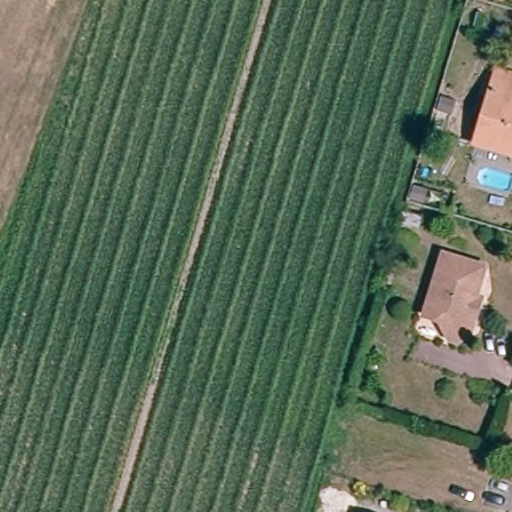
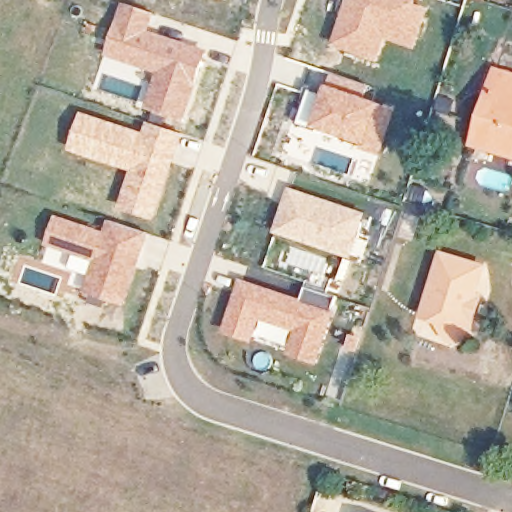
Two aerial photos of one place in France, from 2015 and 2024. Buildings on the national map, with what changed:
new [(348,0),(417,0),(416,2),(429,7),(415,49),(387,39),(377,61),(332,47),(348,0)]
new [(461,1),(459,0),(461,0),(461,1)]
new [(122,2),(154,13),(149,30),(207,48),(184,121),(144,107),(156,75),(106,57),(122,2)]
new [(311,90),(323,94),(330,72),(371,85),(367,97),(397,107),(382,155),(300,123),(311,90)]
unchanged [(468,151),(493,79),(512,86),(512,165),(468,151)]
unchanged [(456,86),(470,90),(466,105),(452,101),(456,86)]
new [(82,112),(143,131),(147,121),(184,133),(156,221),(119,208),(130,171),(69,151),(82,112)]
unchanged [(428,177),(442,182),(437,195),(424,191),(428,177)]
new [(289,187),(366,213),(352,257),(346,256),(272,231),(289,187)]
new [(57,216),(103,230),(107,219),(149,233),(125,307),(80,290),(92,256),(47,242),(57,216)]
unchanged [(454,348),(451,340),(440,319),(425,315),(442,256),(486,268),(477,300),(487,303),(481,321),(471,317),(469,321),(474,329),(478,337),(454,348)]
new [(239,278),(301,299),(307,282),(337,294),(317,366),(283,354),(286,347),(256,337),(253,342),(224,333),(239,278)]

